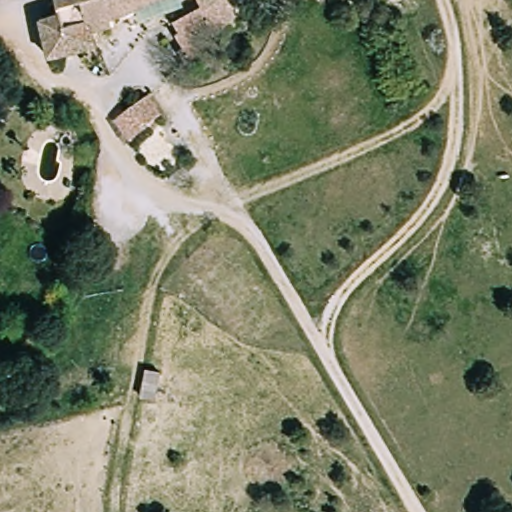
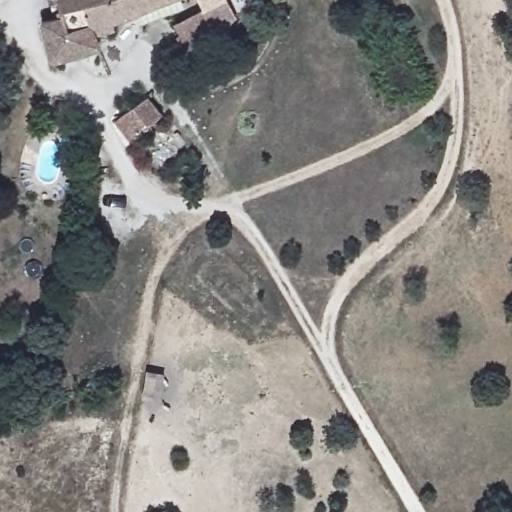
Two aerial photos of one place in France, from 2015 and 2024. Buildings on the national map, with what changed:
unchanged [(121,24),(102,29),(106,44),(54,59),(45,23),(62,17),(58,2),(52,3),(51,0),(163,0),(119,17),(121,24)]
unchanged [(215,40),(217,44),(190,60),(176,37),(180,35),(174,25),(206,5),(208,10),(229,0),(233,0),(240,15),(215,40)]
unchanged [(229,0),(208,10),(204,0),(229,0)]
unchanged [(170,103),(128,142),(113,125),(156,87),(170,103)]

